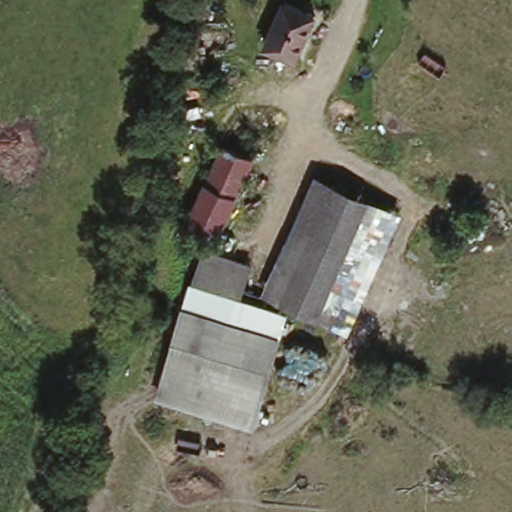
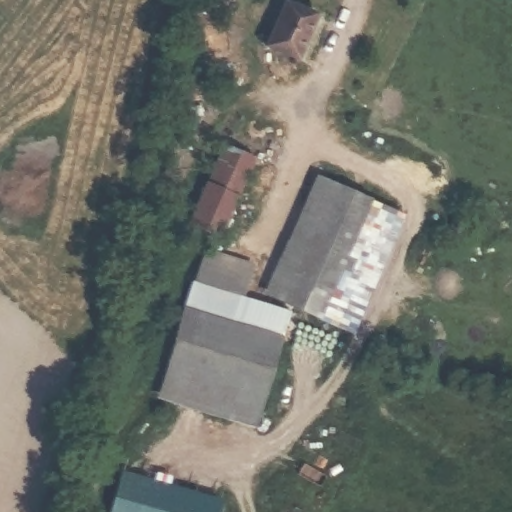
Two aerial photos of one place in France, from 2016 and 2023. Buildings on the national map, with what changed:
unchanged [(319,15),(301,61),(271,50),(289,4),(319,15)]
unchanged [(187,236),(220,156),(227,135),(259,147),(250,169),(218,247),(187,236)]
unchanged [(404,214),(354,337),(263,297),(313,180),(404,214)]
unchanged [(474,200),(465,241),(449,237),(458,196),(474,200)]
unchanged [(200,248),(252,263),(242,298),(188,283),(200,248)]
unchanged [(293,313),(286,340),(184,309),(188,283),(293,313)]
unchanged [(280,338),(254,427),(158,397),(184,309),(280,338)]
new [(219,506),(217,512),(109,512),(119,477),(219,506)]

